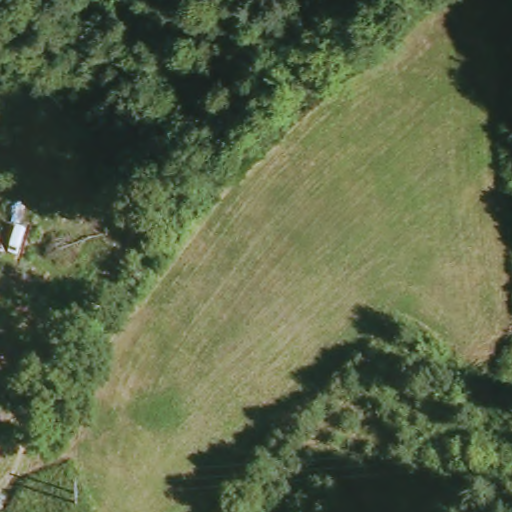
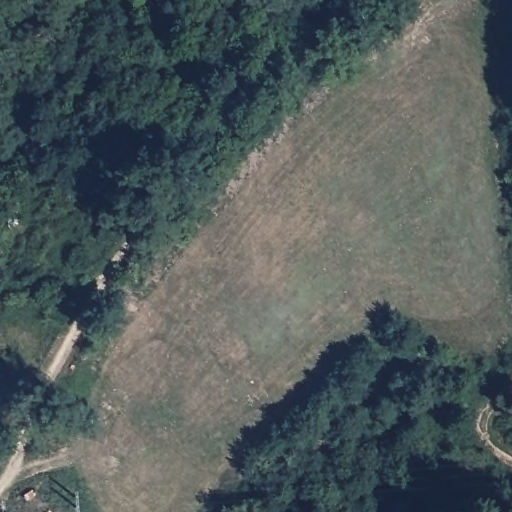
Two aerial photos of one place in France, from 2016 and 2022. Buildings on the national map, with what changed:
unchanged [(86,365),(103,374),(84,422),(64,413),(86,365)]

